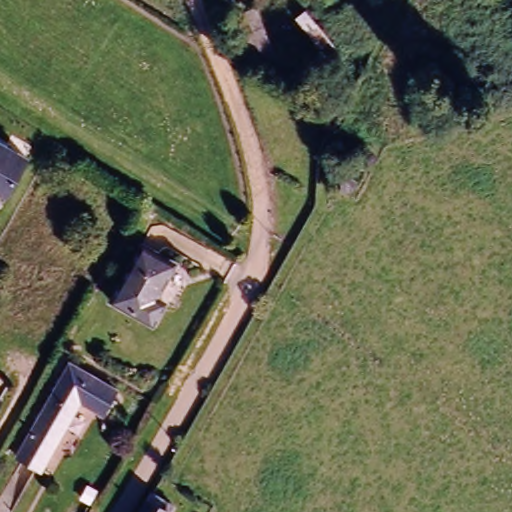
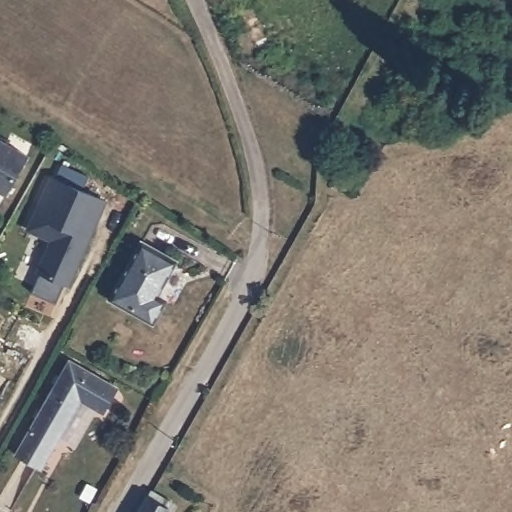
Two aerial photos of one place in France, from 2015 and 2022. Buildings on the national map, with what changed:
demolished [(256,6),(273,51),(242,64),(233,39),(245,33),(235,14),(256,6)]
unchanged [(4,189),(0,187),(0,138),(25,152),(4,189)]
unchanged [(327,171),(332,160),(351,150),(361,171),(350,191),(327,191),(327,171)]
new [(52,177),(105,201),(105,202),(102,200),(93,220),(96,221),(68,285),(38,271),(52,239),(28,229),(52,177)]
unchanged [(176,267),(157,301),(165,306),(152,328),(111,304),(142,248),(176,267)]
unchanged [(66,360),(112,388),(97,412),(75,400),(36,468),(12,453),(66,360)]
unchanged [(169,508),(167,512),(137,512),(146,495),(169,508)]

